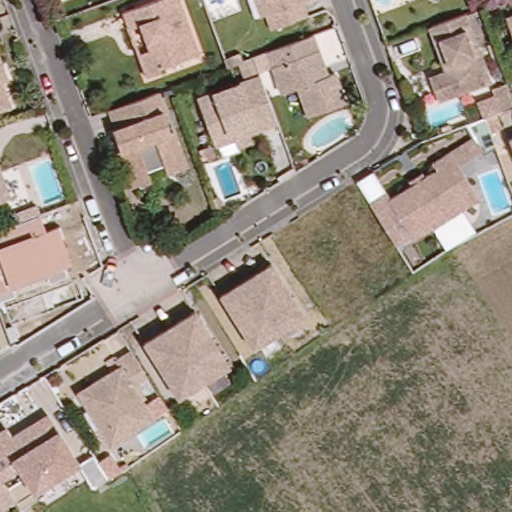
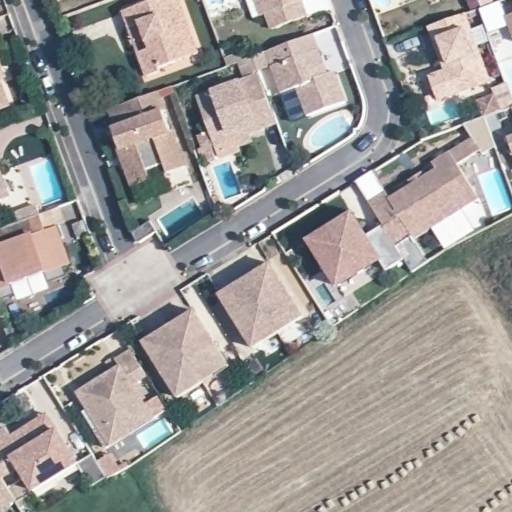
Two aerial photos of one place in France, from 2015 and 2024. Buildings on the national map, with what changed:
unchanged [(139,0),(179,0),(197,49),(157,63),(159,67),(146,72),(137,48),(128,23),(121,7),(139,0)]
unchanged [(306,0),(306,1),(300,3),(305,18),(270,30),(264,15),(260,17),(253,0),(306,0)]
unchanged [(431,18),(466,5),(491,72),(440,92),(431,68),(447,62),(445,55),(431,18)]
unchanged [(512,15),(512,37),(505,17),(512,15)]
unchanged [(331,77),(338,75),(348,104),(311,117),(300,89),(285,95),(270,54),(316,37),(327,69),(331,77)]
unchanged [(1,67),(5,77),(0,79),(0,64),(1,67)]
unchanged [(262,83),(270,104),(255,109),(261,124),(214,141),(197,95),(258,72),(262,83)]
unchanged [(8,107),(0,109),(0,84),(8,107)]
unchanged [(166,112),(173,132),(176,132),(189,168),(170,175),(167,166),(150,172),(153,181),(135,187),(128,169),(127,161),(124,152),(120,153),(111,132),(114,131),(107,112),(112,111),(162,92),(169,112),(166,112)]
unchanged [(512,103),(512,104),(511,103),(512,103)]
unchanged [(512,133),(512,150),(506,135),(512,133)]
unchanged [(410,239),(407,235),(392,245),(365,202),(352,182),(370,171),(382,192),(386,199),(407,185),(405,181),(418,172),(420,177),(432,169),(428,162),(445,151),(475,197),(410,239)]
unchanged [(10,170),(20,194),(0,200),(0,172),(10,170)]
unchanged [(73,264),(65,267),(68,275),(51,280),(49,275),(12,288),(15,294),(0,299),(0,230),(18,222),(15,215),(36,205),(46,231),(58,226),(73,264)]
new [(367,232),(380,226),(392,245),(396,242),(407,259),(386,271),(380,261),(338,289),(306,239),(351,209),(367,232)]
unchanged [(249,348),(215,296),(235,284),(249,275),(267,263),(300,316),(249,348)]
unchanged [(175,397),(140,343),(158,332),(172,323),(190,312),(225,367),(175,397)]
unchanged [(90,412),(79,393),(121,367),(117,360),(132,351),(148,376),(133,385),(155,419),(118,442),(112,446),(90,412)]
unchanged [(32,427),(50,416),(55,425),(80,465),(35,492),(20,468),(3,479),(0,473),(0,434),(7,430),(13,438),(32,427)]
unchanged [(80,465),(95,456),(110,479),(94,487),(80,465)]
unchanged [(3,479),(8,487),(0,492),(0,473),(3,479)]

